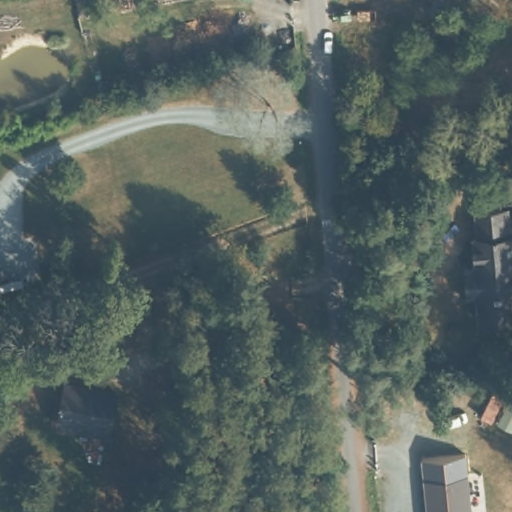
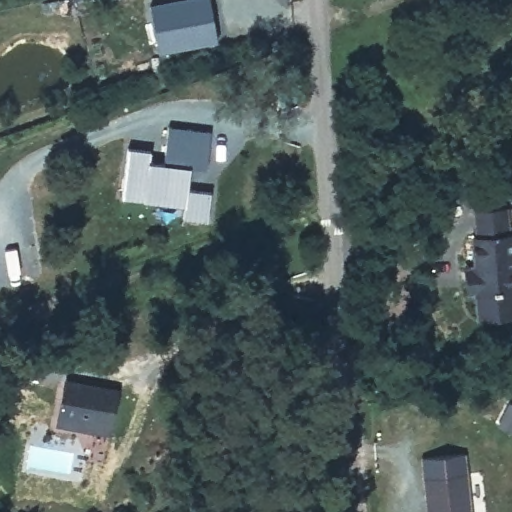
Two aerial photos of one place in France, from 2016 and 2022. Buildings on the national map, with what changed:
new [(150,3),(168,0),(210,0),(218,42),(158,53),(150,3)]
new [(151,150),(150,161),(162,162),(166,125),(208,130),(205,169),(191,167),(189,189),(212,191),(208,222),(182,218),(182,204),(118,196),(125,147),(151,150)]
unchanged [(471,265),(475,265),(473,236),(478,236),(475,211),(508,207),(510,234),(512,234),(512,315),(497,317),(497,313),(476,315),(475,293),(472,293),(467,293),(465,265),(471,265)]
unchanged [(113,390),(108,422),(89,420),(88,427),(55,422),(62,381),(113,390)]
unchanged [(468,469),(475,512),(429,512),(423,477),(468,469)]

